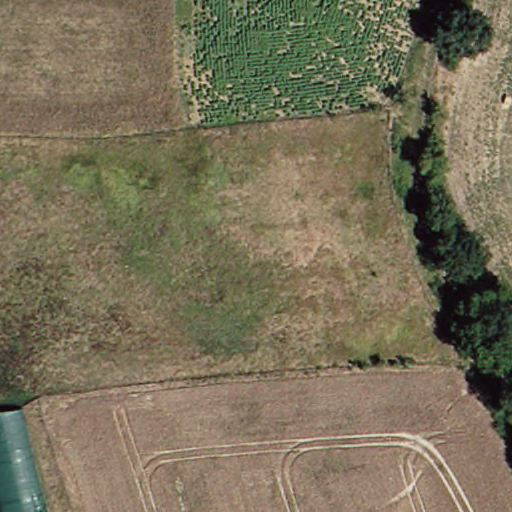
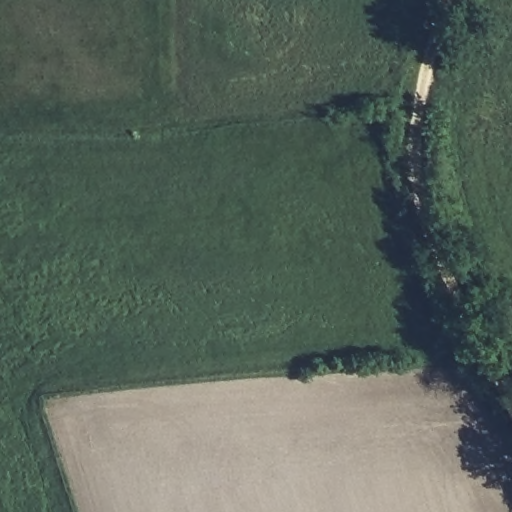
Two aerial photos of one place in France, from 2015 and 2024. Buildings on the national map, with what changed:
demolished [(45,512),(1,512),(0,509),(0,415),(20,411),(45,512)]

